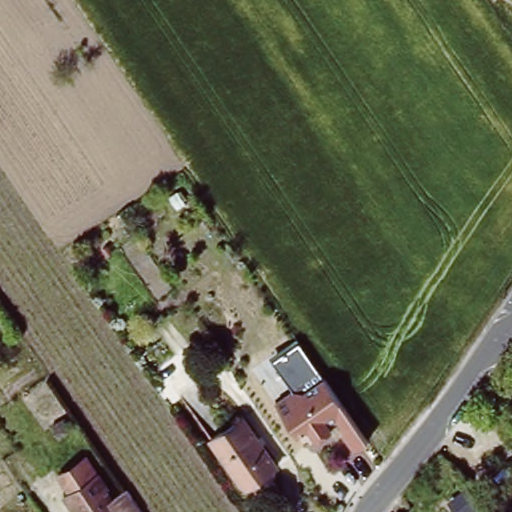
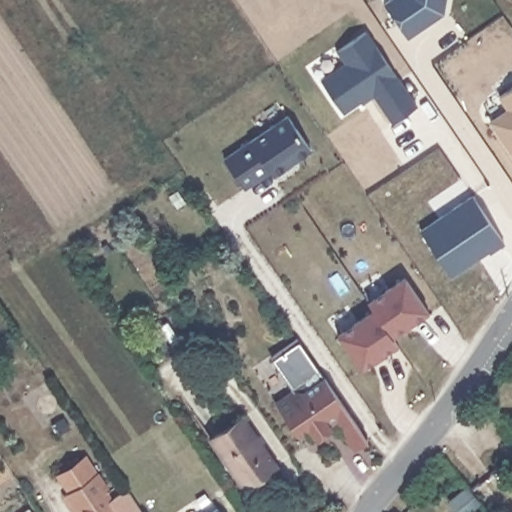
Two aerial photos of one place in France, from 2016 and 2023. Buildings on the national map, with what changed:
new [(437,15),(428,21),(430,24),(406,40),(382,6),(391,0),(446,0),(443,16),(437,15)]
new [(368,94),(341,115),(319,83),(344,65),(335,52),(365,33),(415,108),(391,126),(368,94)]
new [(511,109),(503,97),(512,91),(512,147),(493,122),(511,109)]
new [(286,118),(310,152),(271,178),(268,173),(243,191),(223,162),(286,118)]
new [(493,254),(491,250),(453,276),(422,229),(474,193),(509,243),(493,254)]
new [(399,277),(423,312),(408,323),(406,320),(385,335),(368,310),(363,302),(399,277)]
new [(368,310),(385,335),(392,345),(377,356),(375,353),(355,367),(332,334),(368,310)]
new [(319,366),(290,386),(271,356),(298,337),(319,366)]
unchanged [(322,364),(373,441),(354,454),(333,422),(298,444),(270,399),(322,364)]
unchanged [(271,466),(239,490),(205,439),(238,417),(271,466)]
unchanged [(114,496),(127,490),(141,512),(72,512),(60,494),(65,492),(54,477),(84,457),(114,496)]
unchanged [(474,500),(459,512),(453,512),(444,500),(462,484),(474,500)]
new [(218,505),(223,512),(209,512),(218,505)]

